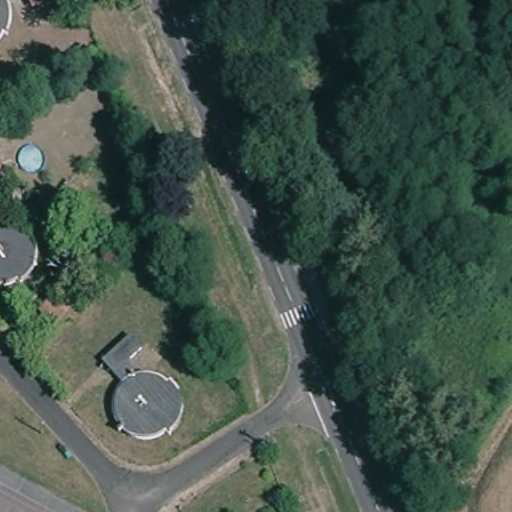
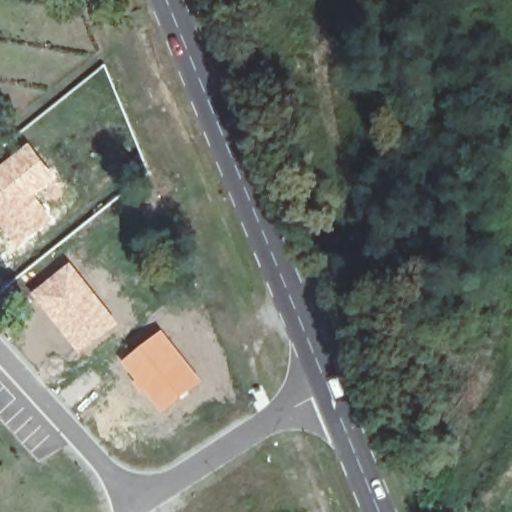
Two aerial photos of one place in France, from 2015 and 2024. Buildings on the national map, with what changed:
demolished [(7,9),(7,17),(6,25),(4,32),(6,33),(3,37),(0,41),(0,0),(4,0),(7,9)]
demolished [(54,6),(35,14),(29,0),(51,0),(54,6)]
new [(20,246),(0,221),(0,166),(30,142),(59,179),(36,195),(54,220),(20,246)]
demolished [(2,226),(6,227),(12,232),(19,239),(21,236),(25,245),(27,252),(27,260),(26,267),(21,273),(13,281),(10,278),(0,284),(0,226),(2,226)]
new [(81,355),(33,293),(72,261),(120,323),(81,355)]
demolished [(40,315),(60,293),(74,306),(54,329),(40,315)]
new [(203,380),(164,413),(145,390),(143,392),(134,382),(138,378),(124,361),(163,330),(203,380)]
demolished [(131,355),(124,361),(133,375),(139,373),(147,373),(156,376),(166,383),(169,380),(176,390),(179,397),(179,407),(178,415),(173,422),(166,430),(164,428),(157,432),(146,436),(135,435),(128,433),(121,428),(116,422),(113,417),(111,406),(111,399),(113,391),(120,381),(101,360),(121,342),(131,355)]

